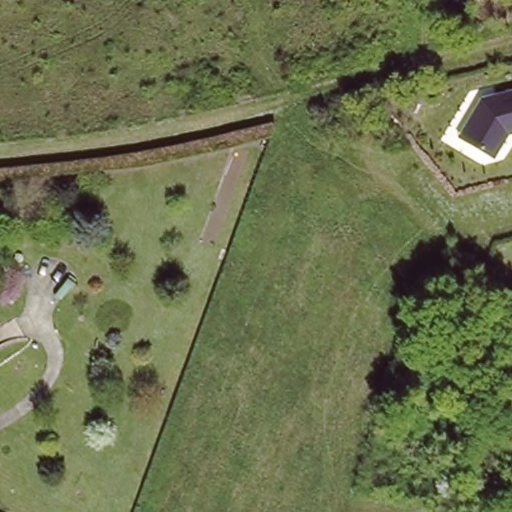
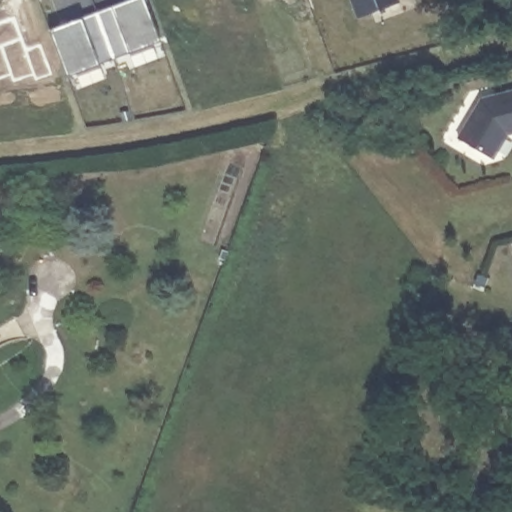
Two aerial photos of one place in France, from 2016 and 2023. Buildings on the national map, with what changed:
new [(143,0),(145,0),(162,46),(68,80),(50,34),(143,0)]
new [(352,0),(399,0),(400,2),(357,17),(352,0)]
unchanged [(479,97),(512,88),(512,135),(505,138),(492,161),(455,138),(479,97)]

